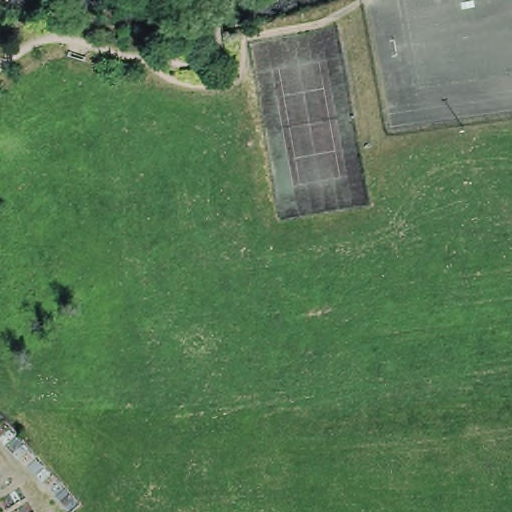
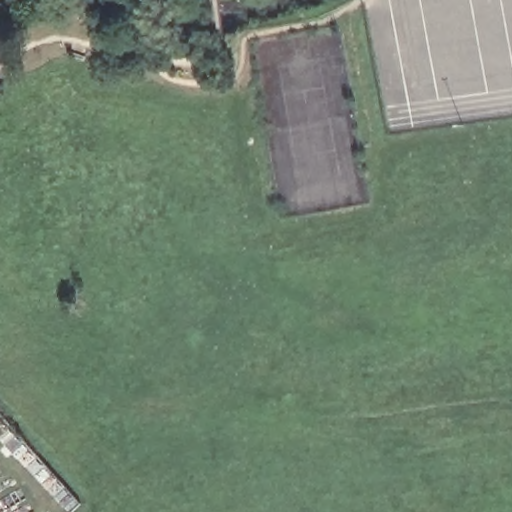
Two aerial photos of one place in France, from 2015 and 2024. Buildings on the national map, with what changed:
[]

